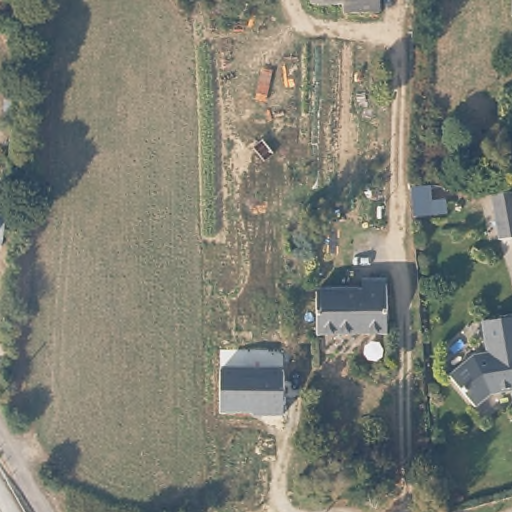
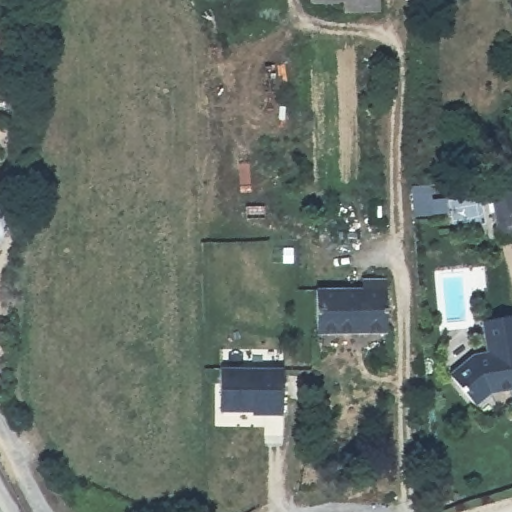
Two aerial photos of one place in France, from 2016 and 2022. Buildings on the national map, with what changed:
unchanged [(344,11),(344,1),(316,3),(313,3),(313,0),(379,0),(379,10),(344,11)]
unchanged [(415,186),(432,185),(433,200),(447,199),(448,214),(415,216),(415,186)]
unchanged [(512,190),(512,234),(500,236),(492,193),(512,190)]
unchanged [(362,289),(362,280),(386,280),(386,332),(318,333),(316,333),(316,289),(318,289),(362,289)]
unchanged [(491,389),(477,402),(450,372),(474,351),(488,349),(483,317),(512,313),(512,386),(491,389)]
unchanged [(281,368),(281,410),(281,415),(253,416),(253,411),(221,412),(222,370),(281,368)]

